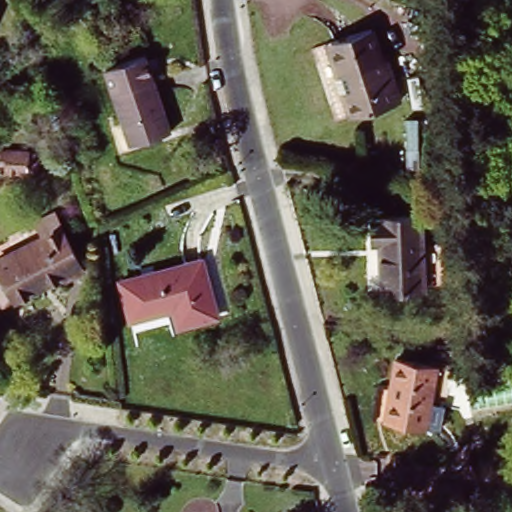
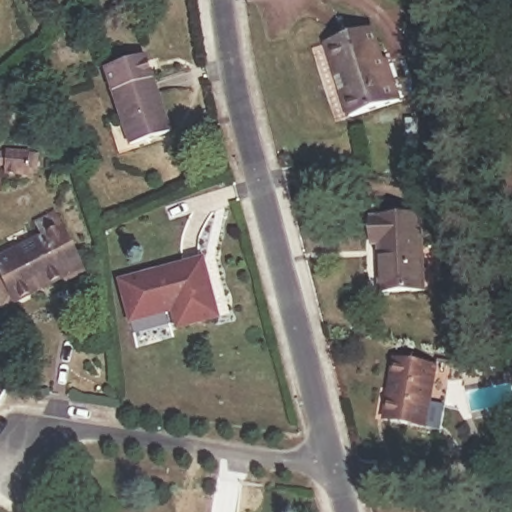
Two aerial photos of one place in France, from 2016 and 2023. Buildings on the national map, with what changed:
unchanged [(347,84),(342,70),(334,72),(324,41),(330,38),(372,25),(385,66),(392,64),(402,100),(350,117),(344,97),(341,87),(347,84)]
unchanged [(105,64),(149,54),(170,137),(125,146),(105,64)]
unchanged [(0,261),(39,240),(32,226),(50,218),(79,271),(15,305),(0,281),(0,261)]
unchanged [(419,218),(422,291),(378,293),(376,247),(370,248),(368,221),(419,218)]
unchanged [(127,311),(120,279),(200,260),(215,316),(175,327),(170,313),(130,323),(127,311)]
unchanged [(377,423),(390,366),(432,373),(422,431),(377,423)]

